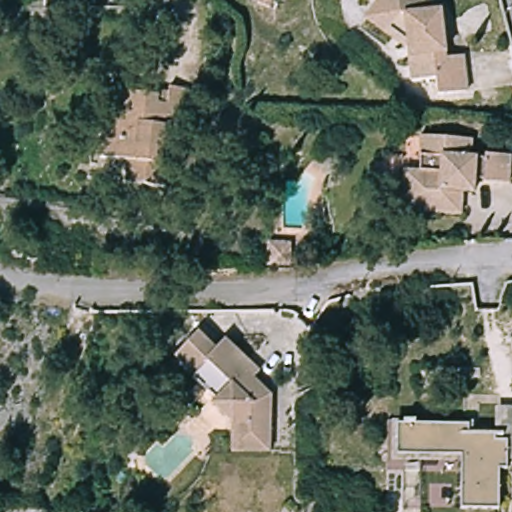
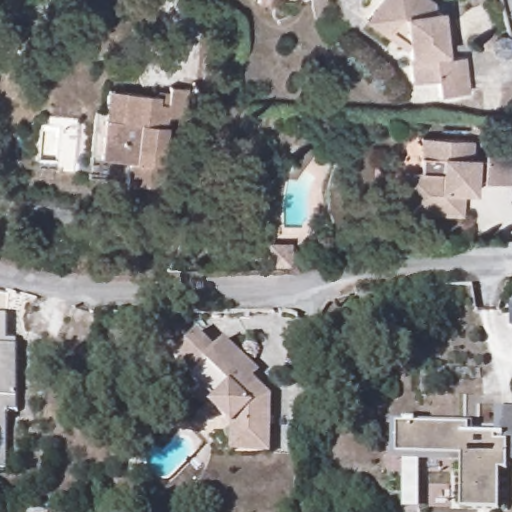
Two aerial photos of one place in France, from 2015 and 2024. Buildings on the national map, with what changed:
unchanged [(361,19),(375,0),(432,0),(441,6),(440,8),(446,56),(463,55),(467,91),(436,94),(434,78),(409,81),(407,51),(361,19)]
unchanged [(156,93),(158,88),(170,89),(171,80),(188,82),(185,116),(166,115),(161,163),(166,163),(164,182),(124,176),(126,157),(97,153),(105,86),(156,93)]
unchanged [(416,170),(418,136),(471,139),(470,156),(483,156),(483,154),(511,155),(509,182),(474,182),(473,194),(462,193),(461,215),(399,212),(401,169),(416,170)]
new [(17,400),(17,410),(8,410),(8,468),(0,468),(0,313),(8,313),(8,338),(18,338),(18,346),(17,400)]
unchanged [(198,411),(205,405),(193,390),(200,383),(193,377),(198,373),(176,351),(197,330),(216,348),(226,338),(242,353),(237,359),(246,367),(241,371),(253,383),(258,378),(272,392),(273,457),(236,456),(236,435),(223,434),(198,411)]
unchanged [(496,404),(512,404),(512,460),(510,460),(509,466),(501,466),(501,506),(463,506),(463,470),(389,468),(390,417),(471,418),(471,431),(496,431),(496,404)]

